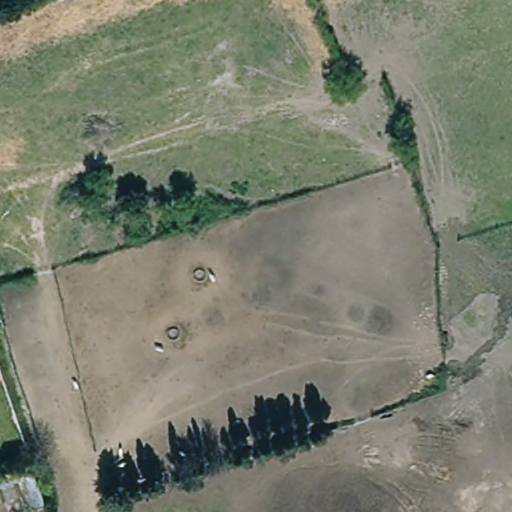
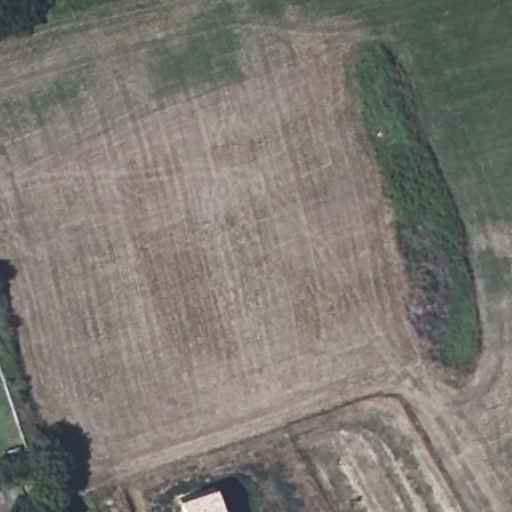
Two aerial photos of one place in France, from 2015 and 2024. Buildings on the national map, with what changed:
unchanged [(48,503),(19,512),(0,512),(0,480),(37,468),(48,503)]
new [(214,484),(224,512),(184,512),(179,496),(214,484)]

